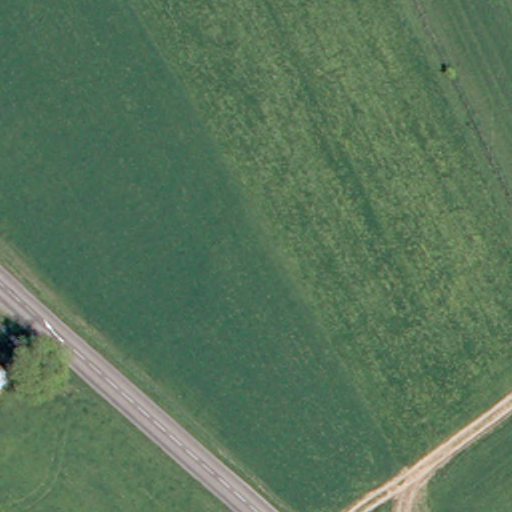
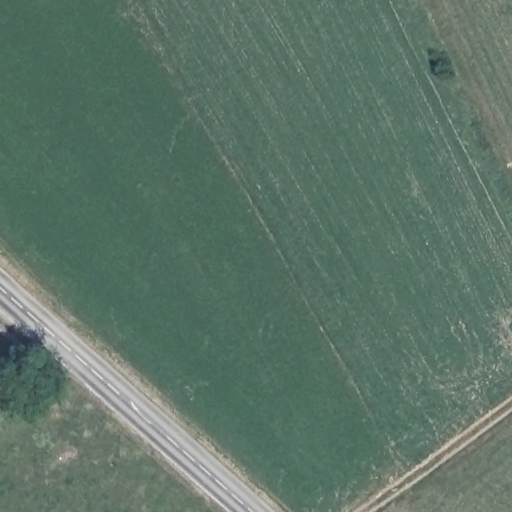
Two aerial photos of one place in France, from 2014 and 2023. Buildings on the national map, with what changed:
unchanged [(13,386),(0,399),(0,372),(13,386)]

